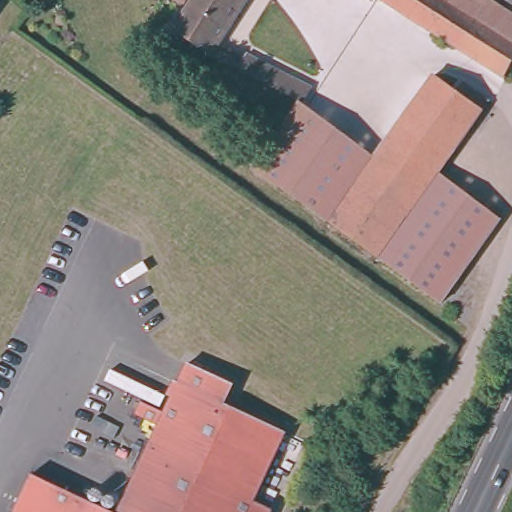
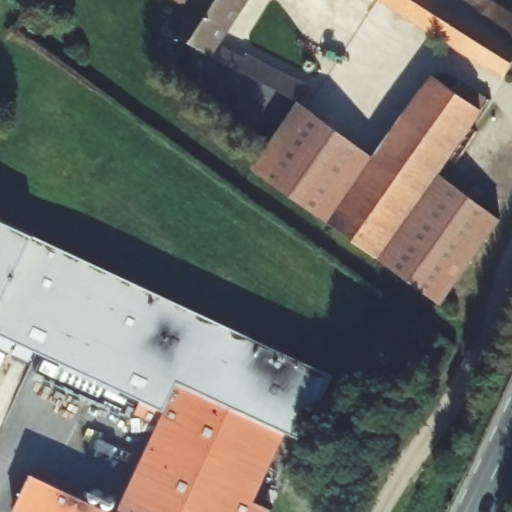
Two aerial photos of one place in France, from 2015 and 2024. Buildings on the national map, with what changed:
unchanged [(172,30),(191,0),(244,0),(210,54),(172,30)]
unchanged [(179,0),(186,0),(184,3),(179,0)]
unchanged [(512,9),(512,61),(504,74),(387,0),(497,0),(506,6),(512,9)]
unchanged [(297,97),(296,99),(294,99),(293,97),(216,57),(223,46),(244,57),(246,53),(303,82),(304,84),(306,84),(297,97)]
unchanged [(469,117),(435,170),(434,172),(410,209),(401,222),(401,223),(380,255),(330,219),(350,189),(377,148),(429,69),(480,101),(469,117)]
unchanged [(325,216),(256,164),(279,130),(300,98),(377,148),(350,189),(330,219),(325,216)]
unchanged [(401,223),(401,222),(410,209),(434,172),(503,215),(445,297),(442,301),(380,255),(401,223)]
new [(35,350),(29,362),(0,350),(0,221),(34,237),(333,376),(304,440),(280,430),(282,426),(221,397),(230,378),(183,357),(174,375),(170,373),(163,388),(167,390),(161,401),(138,388),(135,394),(35,350)]
unchanged [(112,507),(115,500),(153,417),(129,406),(138,388),(161,401),(167,390),(163,388),(170,373),(174,375),(183,357),(230,378),(221,397),(282,426),(249,496),(268,503),(264,512),(21,512),(20,512),(18,511),(7,506),(25,467),(41,476),(43,477),(83,495),(112,507)]

